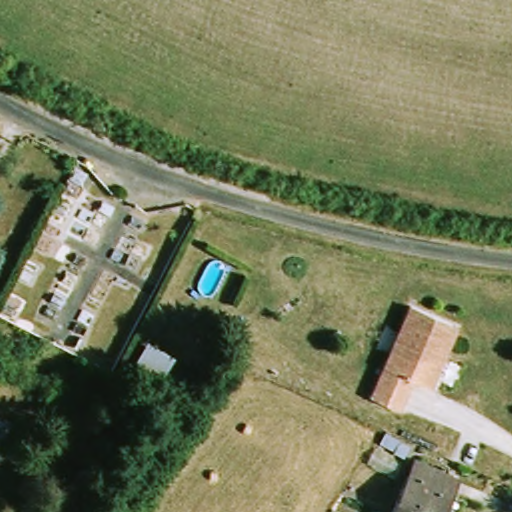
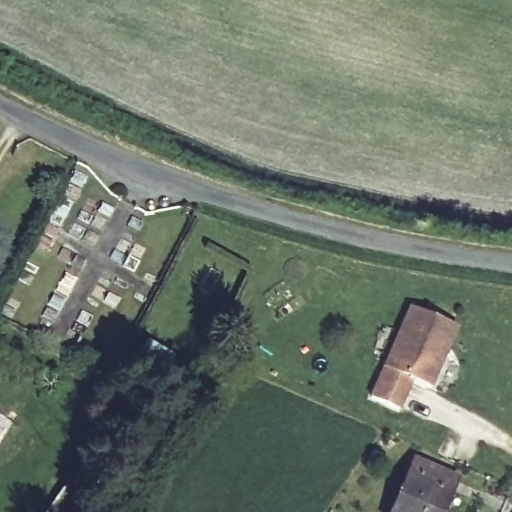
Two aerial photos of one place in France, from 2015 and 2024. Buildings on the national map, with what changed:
unchanged [(415,305),(462,324),(437,385),(418,377),(406,407),(378,395),(415,305)]
unchanged [(445,512),(395,512),(412,465),(448,479),(438,507),(445,512)]
unchanged [(80,467),(100,479),(77,512),(48,512),(80,467)]

